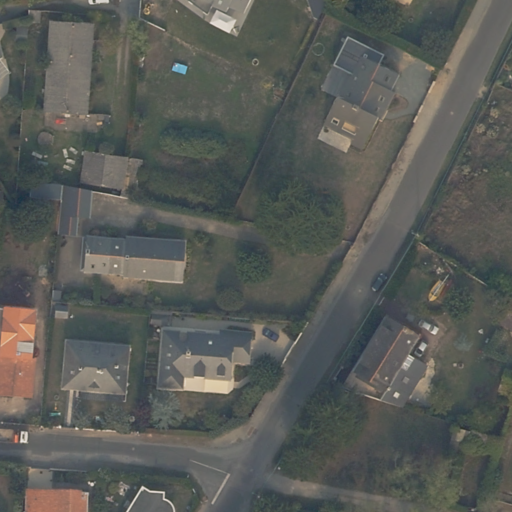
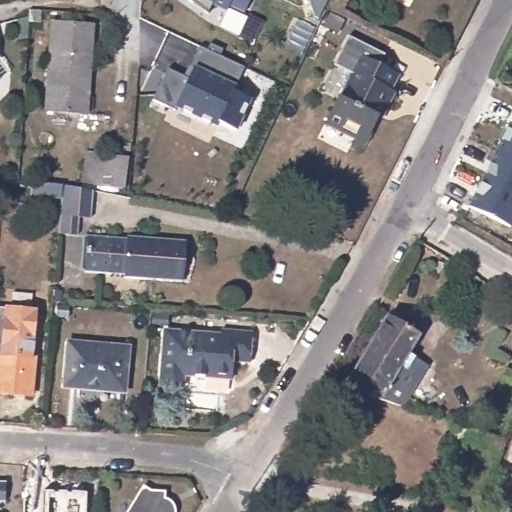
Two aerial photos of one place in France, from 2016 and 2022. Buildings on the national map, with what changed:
unchanged [(243,14),(212,5),(205,13),(190,0),(250,0),(243,14)]
unchanged [(83,118),(43,111),(56,21),(94,28),(83,118)]
new [(167,68),(189,67),(198,46),(245,67),(234,88),(254,97),(237,133),(218,125),(176,107),(152,101),(167,68)]
unchanged [(359,147),(348,141),(352,133),(323,118),(334,95),(337,96),(350,70),(343,66),(352,49),(385,67),(377,84),(391,91),(382,109),(380,108),(375,117),(359,147)]
new [(467,208),(511,123),(512,123),(512,225),(511,227),(467,208)]
unchanged [(121,186),(81,177),(90,142),(128,152),(121,186)]
unchanged [(62,178),(67,179),(92,184),(88,231),(58,229),(62,178)]
unchanged [(129,234),(129,232),(185,237),(182,276),(125,272),(125,269),(85,266),(88,231),(129,234)]
unchanged [(511,298),(512,298),(512,330),(499,323),(511,298)]
unchanged [(1,310),(2,308),(36,311),(32,358),(0,354),(0,310),(1,310)]
unchanged [(384,311),(414,330),(404,347),(422,358),(397,399),(375,392),(342,382),(384,311)]
unchanged [(220,331),(221,326),(252,329),(250,359),(233,357),(231,374),(183,370),(182,383),(160,380),(165,325),(220,331)]
unchanged [(118,393),(58,387),(62,343),(123,349),(118,393)]
unchanged [(32,358),(28,395),(0,391),(0,354),(32,358)]
unchanged [(463,436),(466,427),(497,437),(492,452),(461,442),(463,436)]
unchanged [(125,511),(141,486),(147,489),(160,491),(159,500),(165,506),(167,511),(168,512),(127,512),(125,511)]
unchanged [(84,494),(83,512),(26,512),(28,491),(84,494)]

